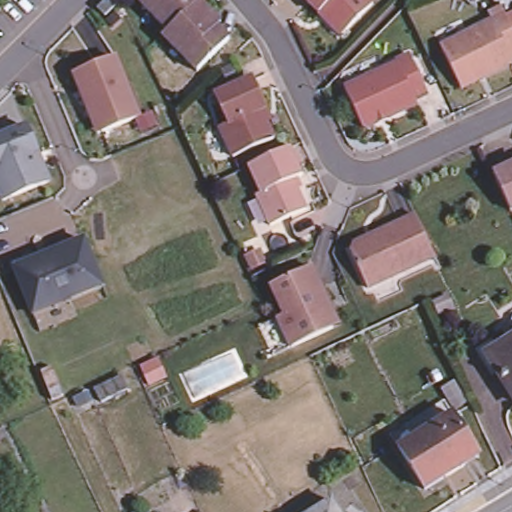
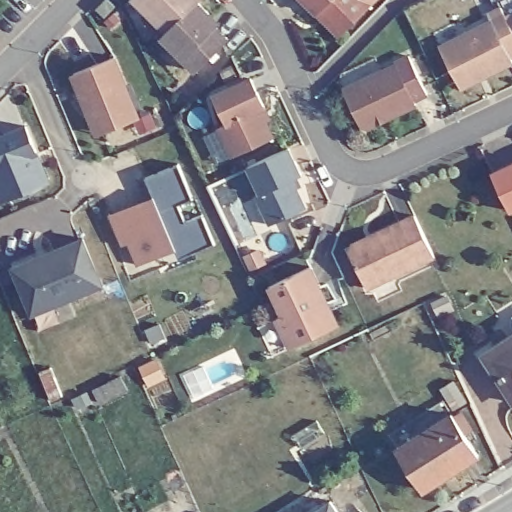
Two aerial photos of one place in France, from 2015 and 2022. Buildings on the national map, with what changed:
unchanged [(132,0),(191,0),(184,7),(163,29),(162,28),(132,0)]
unchanged [(191,0),(194,0),(207,11),(216,19),(214,23),(227,35),(196,68),(158,34),(163,29),(184,7),(191,0)]
unchanged [(303,0),(368,0),(374,5),(341,37),(326,22),(319,15),(303,0)]
unchanged [(115,11),(106,20),(98,13),(108,4),(115,11)]
unchanged [(441,47),(490,22),(487,16),(497,11),(501,9),(502,8),(512,28),(512,59),(512,60),(512,65),(485,78),(461,90),(458,84),(441,47)]
unchanged [(368,129),(362,127),(344,89),(384,71),(397,66),(395,63),(411,56),(429,95),(415,102),(417,106),(387,120),(378,124),(368,129)]
unchanged [(89,112),(74,76),(116,59),(140,119),(103,134),(98,136),(89,112)]
unchanged [(273,119),(268,122),(275,138),(235,158),(221,129),(229,125),(216,96),(254,78),(267,107),(273,119)]
unchanged [(47,184),(4,202),(0,194),(0,139),(27,128),(38,154),(50,183),(47,184)]
unchanged [(303,176),(293,180),(306,209),(271,226),(257,196),(261,194),(250,168),(290,149),(303,176)]
new [(193,198),(179,204),(187,221),(202,215),(215,243),(178,259),(176,250),(138,265),(129,243),(122,245),(109,214),(154,196),(146,176),(178,164),(193,198)]
unchanged [(492,174),(512,165),(512,212),(510,212),(492,174)]
unchanged [(351,253),(354,246),(373,237),(401,223),(416,215),(436,258),(421,265),(368,289),(351,253)]
unchanged [(48,256),(84,241),(103,287),(34,316),(14,269),(39,259),(48,256)]
unchanged [(242,249),(258,242),(268,264),(252,271),(242,249)]
unchanged [(261,329),(279,321),(285,318),(272,288),(312,268),(330,305),(340,327),(334,330),(293,350),(275,359),(261,329)]
unchanged [(509,323),(512,322),(512,337),(508,330),(509,323)]
unchanged [(512,343),(512,407),(482,362),(512,343)]
unchanged [(141,369),(156,361),(165,379),(150,386),(141,369)]
unchanged [(129,392),(101,406),(95,392),(123,378),(129,392)]
unchanged [(475,459),(422,492),(396,450),(450,417),(475,459)]
unchanged [(314,512),(327,503),(332,512),(314,512)]

